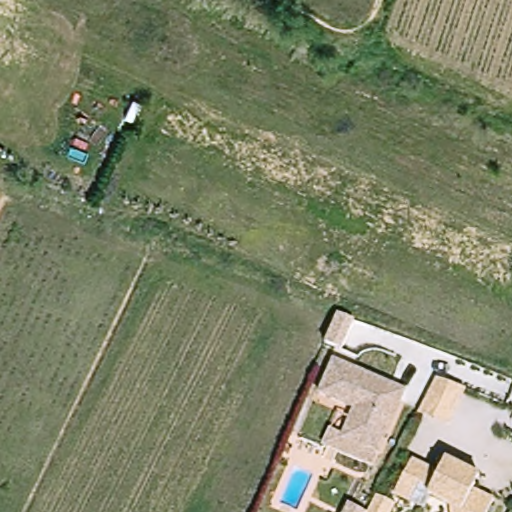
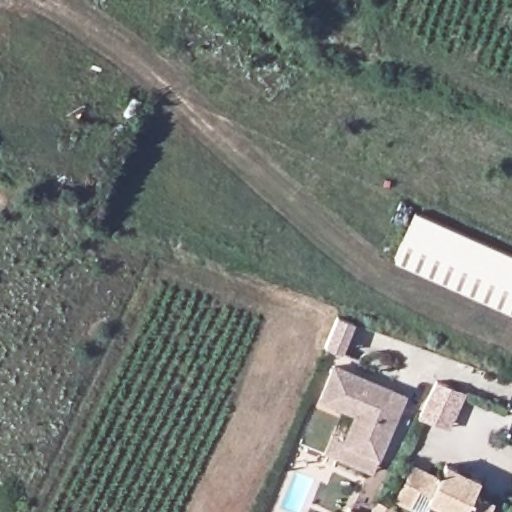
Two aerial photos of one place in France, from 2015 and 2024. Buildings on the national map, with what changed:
new [(415,212),(512,256),(512,312),(395,260),(415,212)]
new [(332,331),(351,338),(338,368),(319,361),(332,331)]
unchanged [(331,452),(342,426),(355,432),(362,414),(326,398),(340,366),(400,391),(411,396),(406,407),(385,459),(379,472),(331,452)]
unchanged [(437,378),(465,390),(447,426),(417,414),(437,378)]
unchanged [(453,508),(430,496),(434,491),(421,483),(412,501),(397,493),(415,460),(441,475),(449,461),(482,478),(474,492),(494,503),(490,512),(453,512),(453,508)]
unchanged [(378,500),(395,510),(394,512),(371,512),(378,500)]

